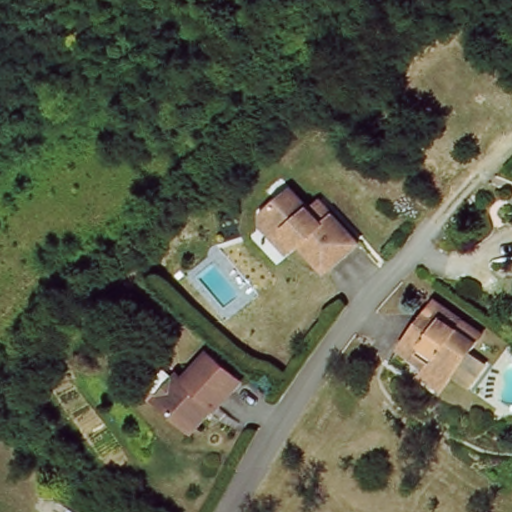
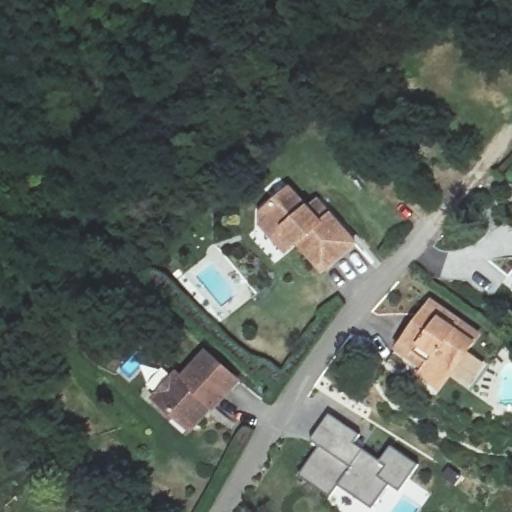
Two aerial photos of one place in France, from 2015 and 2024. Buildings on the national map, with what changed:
unchanged [(276,247),(264,234),(261,222),(286,196),(305,213),(314,206),(322,214),(358,248),(329,277),(303,251),(298,256),(291,262),(276,247)]
unchanged [(399,359),(404,352),(395,346),(400,340),(429,298),(459,320),(479,334),(473,343),(446,382),(441,390),(399,359)]
unchanged [(177,420),(156,404),(176,379),(181,383),(203,355),(238,381),(216,411),(213,408),(209,413),(211,414),(200,429),(196,435),(177,420)]
new [(300,477),(319,448),(310,442),(328,416),(360,437),(354,445),(380,462),(391,447),(418,466),(399,493),(389,486),(372,510),(338,487),(330,497),(300,477)]

